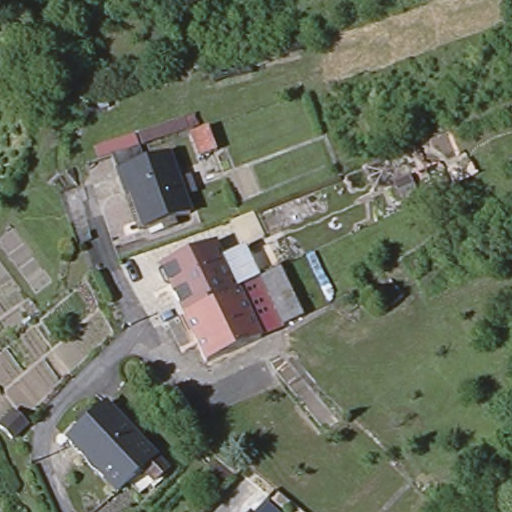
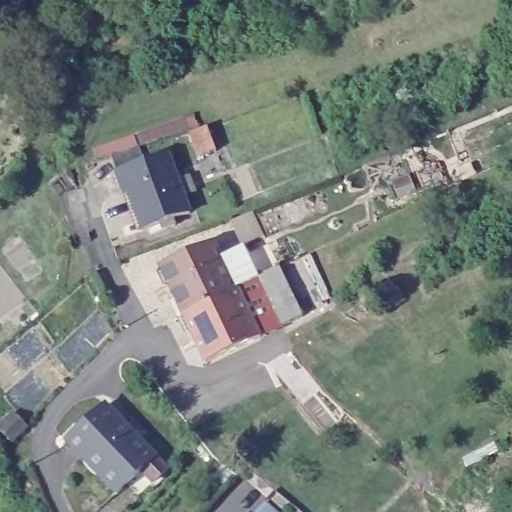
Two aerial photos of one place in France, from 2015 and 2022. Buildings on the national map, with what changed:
unchanged [(207,126),(215,150),(197,157),(187,133),(207,126)]
unchanged [(188,212),(142,230),(128,194),(124,196),(115,173),(110,157),(137,147),(142,162),(167,155),(188,212)]
unchanged [(400,177),(405,191),(393,196),(388,181),(400,177)]
unchanged [(252,210),(264,237),(243,246),(230,220),(252,210)]
unchanged [(159,267),(209,244),(231,290),(232,291),(182,315),(159,267)]
unchanged [(254,279),(242,256),(251,251),(250,250),(262,245),(274,270),(296,316),(277,325),(253,336),(232,291),(231,290),(254,279)]
unchanged [(387,279),(401,297),(384,310),(370,292),(387,279)]
unchanged [(232,291),(253,336),(254,338),(204,362),(182,315),(232,291)]
unchanged [(104,405),(165,469),(152,482),(140,469),(115,493),(65,441),(104,405)]
unchanged [(17,421),(24,427),(10,442),(0,433),(0,428),(8,420),(14,425),(17,421)]

